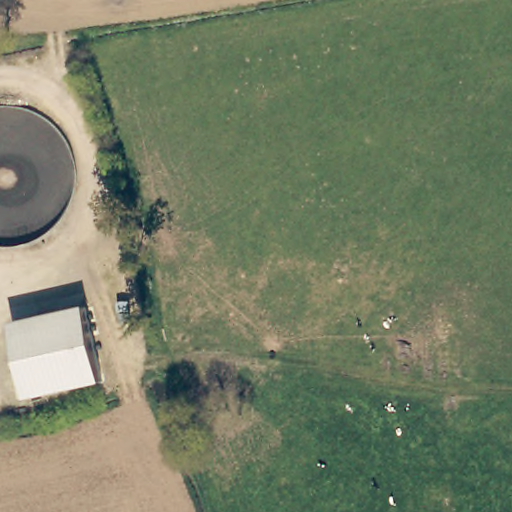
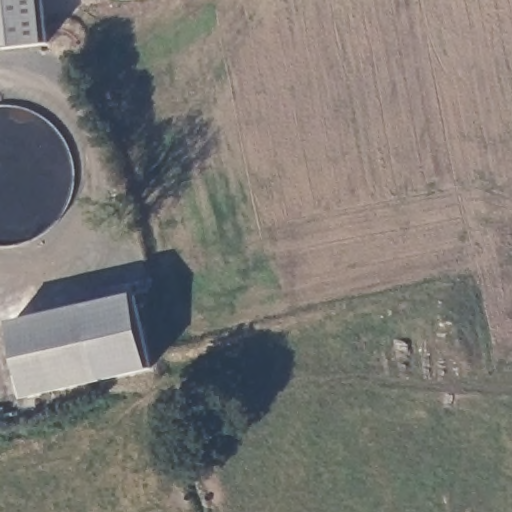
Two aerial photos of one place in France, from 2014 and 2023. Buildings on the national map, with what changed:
new [(48,45),(0,49),(0,0),(44,0),(48,45)]
new [(87,307),(136,295),(154,372),(105,382),(87,307)]
unchanged [(87,307),(105,382),(29,398),(12,323),(87,307)]

